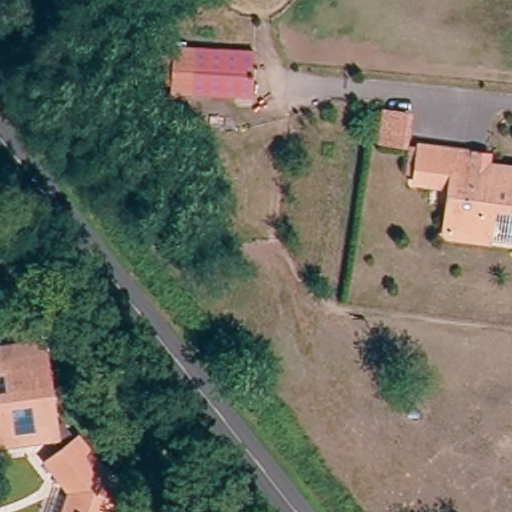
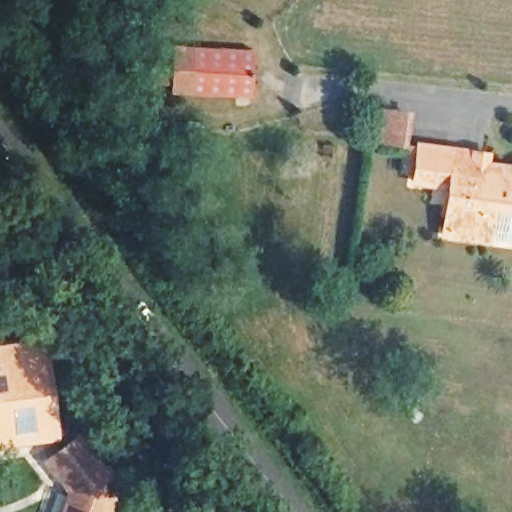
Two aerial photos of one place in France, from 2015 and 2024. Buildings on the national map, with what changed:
unchanged [(246,49),(241,95),(183,91),(181,91),(181,88),(186,45),(246,49)]
unchanged [(406,115),(403,150),(373,147),(377,112),(406,115)]
unchanged [(465,156),(464,167),(482,170),(512,173),(512,216),(484,213),(480,243),(439,239),(443,191),(407,187),(410,151),(465,156)]
unchanged [(0,347),(45,343),(59,445),(0,455),(0,347)]
unchanged [(68,491),(45,462),(78,432),(121,479),(111,512),(61,512),(68,491)]

